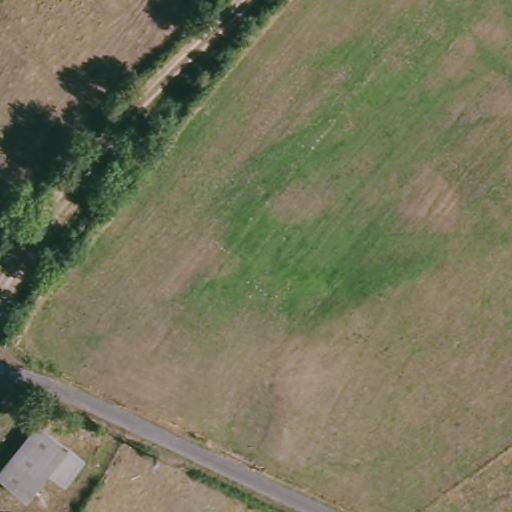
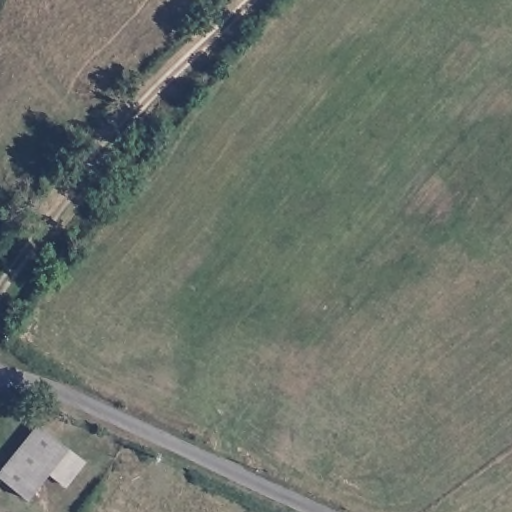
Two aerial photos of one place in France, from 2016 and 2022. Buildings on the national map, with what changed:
unchanged [(30,424),(75,455),(60,480),(40,467),(20,495),(0,481),(0,466),(30,424)]

